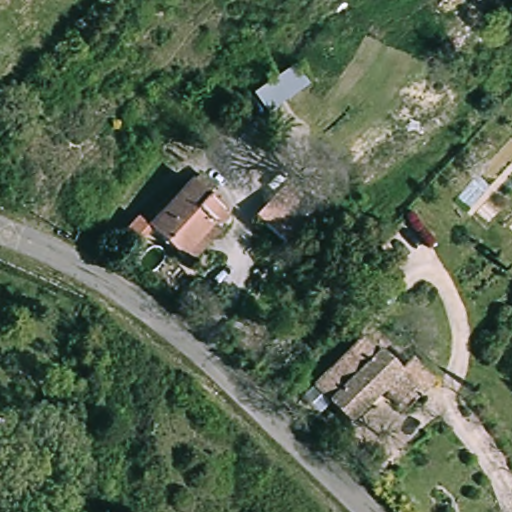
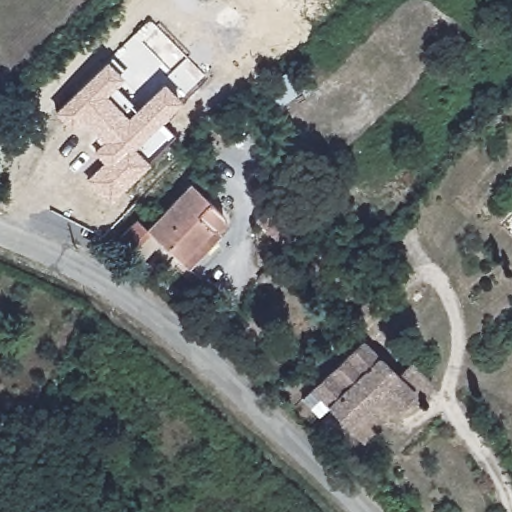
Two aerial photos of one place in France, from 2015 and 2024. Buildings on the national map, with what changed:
new [(124,76),(116,85),(137,107),(162,81),(181,100),(160,121),(175,135),(150,163),(109,204),(85,179),(102,161),(53,111),(106,59),(124,76)]
unchanged [(294,66),(308,87),(268,114),(254,94),(294,66)]
unchanged [(173,258),(145,230),(195,181),(233,220),(223,230),(185,268),(173,258)]
unchanged [(285,190),(298,203),(290,212),(305,227),(290,242),(275,226),(261,213),(285,190)]
unchanged [(133,217),(145,230),(125,251),(112,238),(133,217)]
unchanged [(362,342),(365,340),(397,374),(385,396),(378,402),(351,427),(332,406),(320,417),(302,398),(362,342)]
unchanged [(397,375),(397,374),(410,361),(433,383),(413,402),(407,397),(397,407),(385,396),(397,375)]

